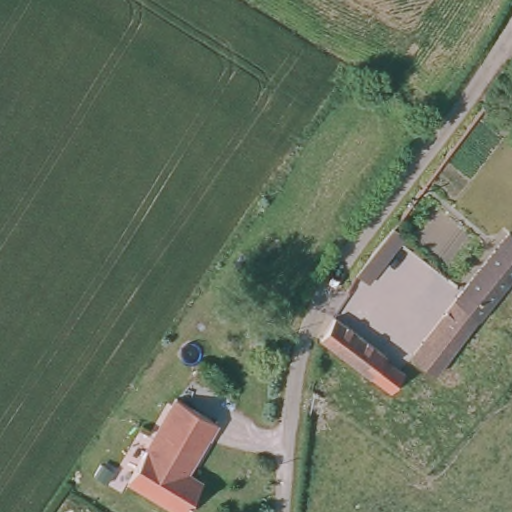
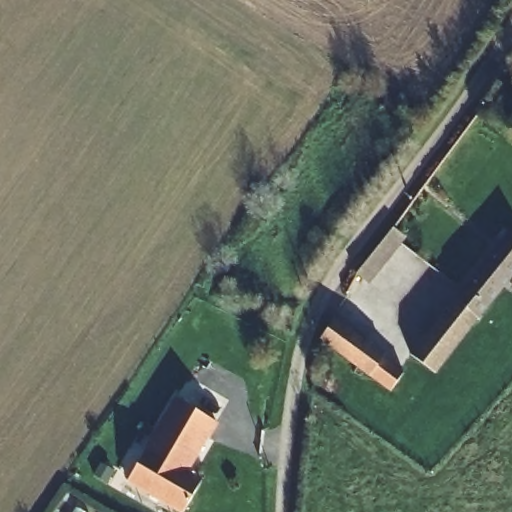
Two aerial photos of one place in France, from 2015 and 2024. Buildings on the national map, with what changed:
unchanged [(471,274),(506,231),(512,236),(512,276),(505,285),(498,294),(470,329),(435,374),(412,355),(409,353),(459,289),(471,274)]
unchanged [(387,232),(398,242),(393,250),(361,290),(349,280),(381,240),(387,232)]
unchanged [(369,364),(331,338),(336,320),(384,355),(403,368),(393,381),(388,387),(373,376),(378,369),(375,367),(369,364)]
unchanged [(180,472),(197,483),(178,512),(176,512),(125,478),(176,399),(211,423),(180,472)]

